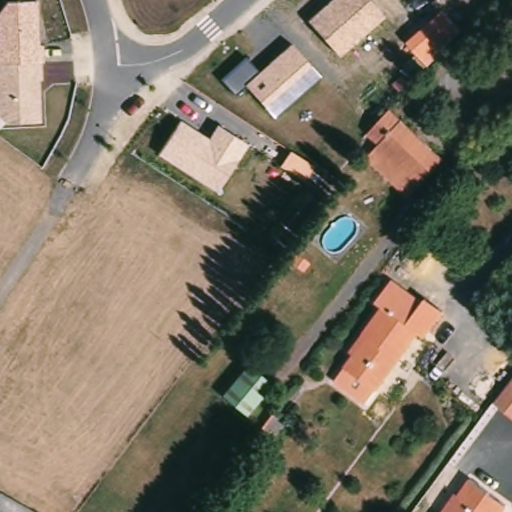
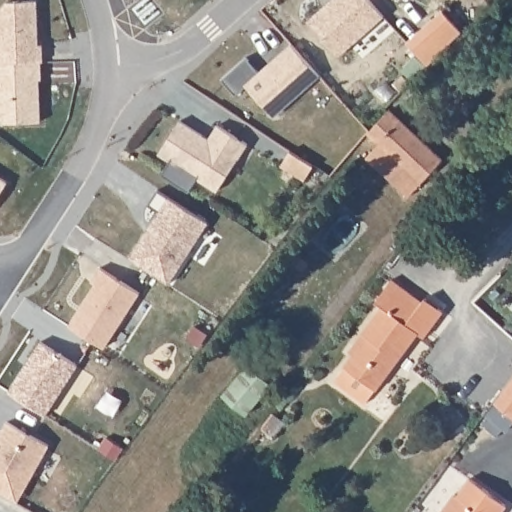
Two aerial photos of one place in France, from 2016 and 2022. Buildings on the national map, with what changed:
unchanged [(331,0),(370,0),(383,16),(337,54),(309,21),(331,0)]
unchanged [(2,123),(0,121),(0,10),(6,1),(39,1),(40,45),(43,45),(42,78),(39,78),(41,122),(2,123)]
unchanged [(442,11),(463,32),(429,66),(407,41),(442,11)]
unchanged [(321,77),(275,117),(246,85),(236,96),(222,80),(246,58),(258,72),(290,45),(321,77)]
unchanged [(393,175),(371,152),(380,142),(367,131),(392,107),(447,157),(422,182),(411,193),(393,175)]
unchanged [(209,138),(217,125),(247,145),(219,193),(158,155),(179,121),(209,138)]
new [(289,151),(312,166),(302,181),(279,166),(289,151)]
new [(160,210),(150,203),(157,190),(208,221),(169,282),(130,259),(160,210)]
new [(69,324),(97,282),(92,279),(100,267),(139,293),(105,347),(69,324)]
unchanged [(304,275),(299,282),(288,274),(293,267),(304,275)]
unchanged [(376,296),(396,271),(429,297),(433,291),(451,304),(429,332),(422,327),(380,386),(379,386),(368,400),(337,377),(348,362),(347,362),(371,332),(366,328),(385,303),(376,296)]
unchanged [(221,394),(246,362),(268,380),(272,383),(246,416),(244,414),(221,394)]
unchanged [(512,417),(496,403),(512,383),(512,417)]
new [(49,445),(17,500),(0,491),(0,429),(5,420),(49,445)]
unchanged [(472,479),(511,507),(508,512),(444,512),(452,499),(456,502),(472,479)]

